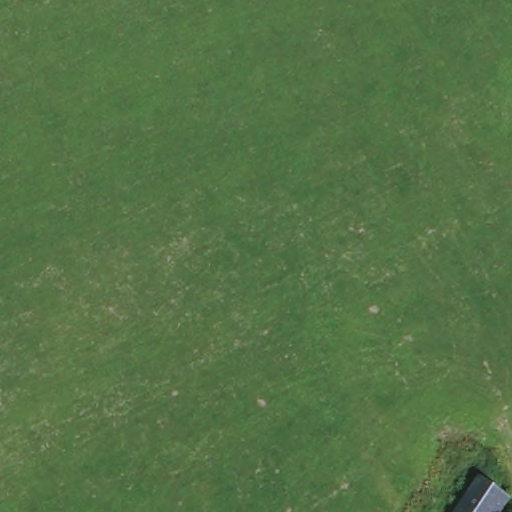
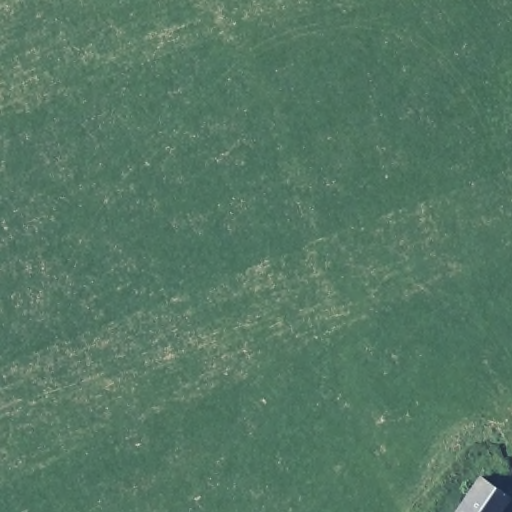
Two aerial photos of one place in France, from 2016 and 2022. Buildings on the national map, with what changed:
unchanged [(483,479),(509,498),(499,512),(457,512),(483,479)]

